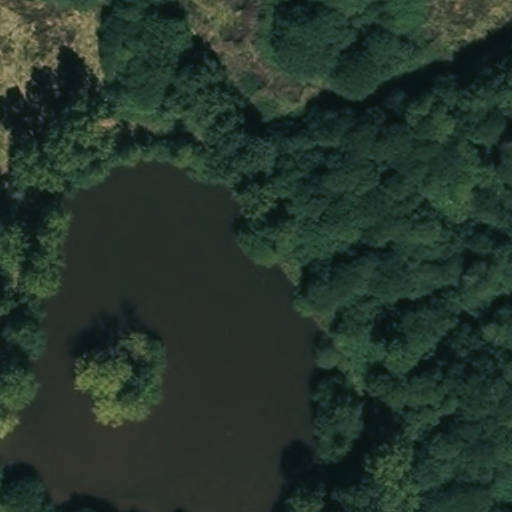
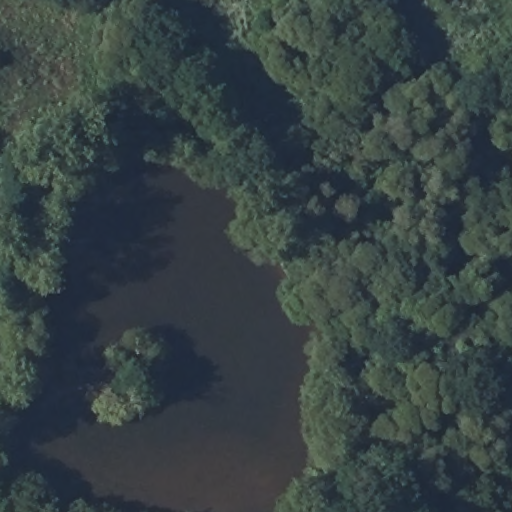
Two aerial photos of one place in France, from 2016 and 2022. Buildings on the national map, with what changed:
[]

